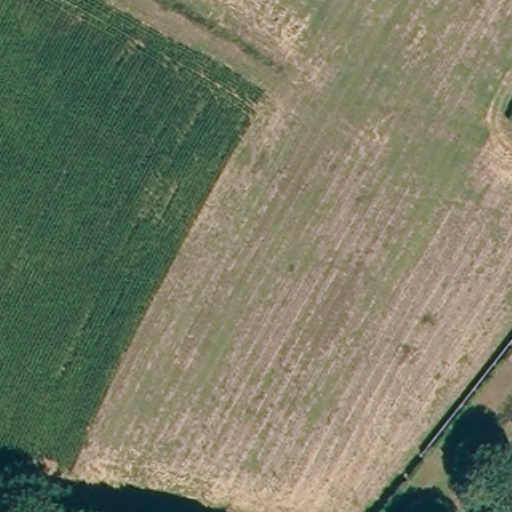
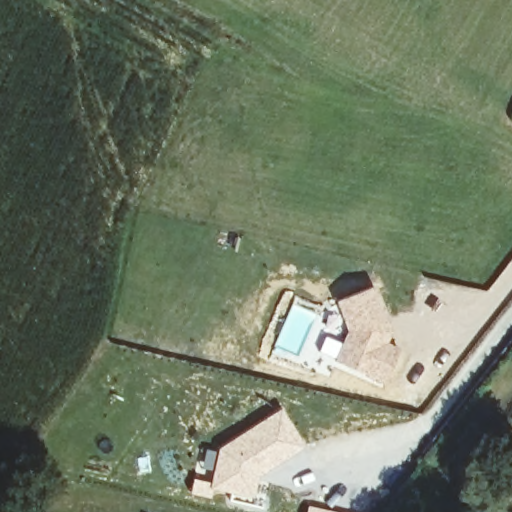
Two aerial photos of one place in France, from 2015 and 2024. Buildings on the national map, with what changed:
new [(324,335),(339,342),(345,330),(334,301),(375,285),(395,340),(391,344),(400,348),(383,387),(317,353),(324,335)]
new [(192,478),(209,481),(213,453),(214,447),(281,407),(304,448),(259,476),(258,478),(255,496),(254,507),(228,501),(229,492),(209,488),(208,496),(189,493),(192,478)]
new [(306,505),(335,512),(304,512),(306,505)]

